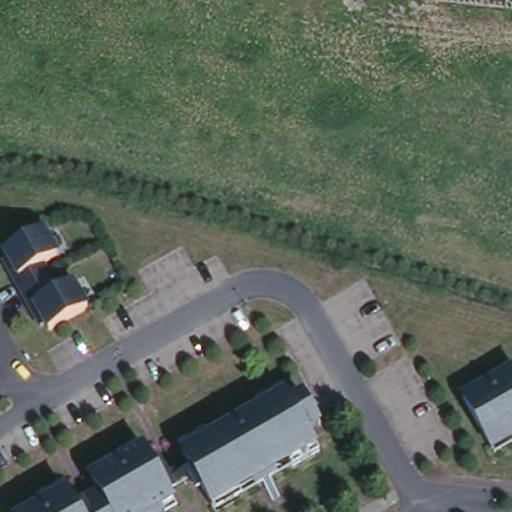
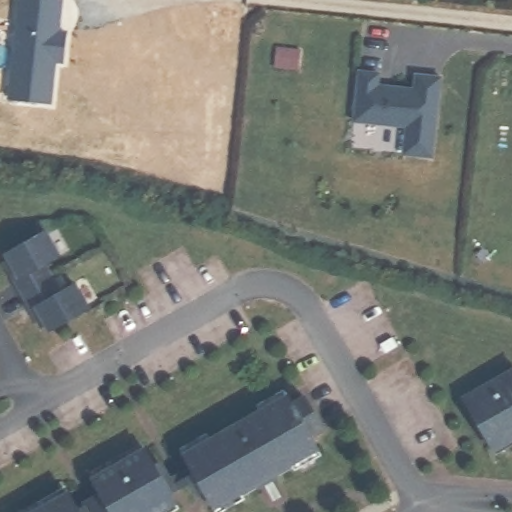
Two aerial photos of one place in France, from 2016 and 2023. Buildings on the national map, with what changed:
new [(61,106),(9,101),(19,0),(66,0),(71,0),(61,106)]
new [(273,67),(275,47),(300,50),(297,70),(273,67)]
new [(432,157),(403,154),(406,127),(353,121),(359,72),(378,74),(377,88),(387,89),(388,87),(414,90),(415,75),(440,77),(432,157)]
unchanged [(6,247),(49,223),(61,250),(53,255),(68,281),(78,275),(93,304),(50,325),(6,247)]
unchanged [(512,360),(512,439),(497,448),(463,389),(512,360)]
unchanged [(182,447),(287,384),(324,447),(215,506),(182,447)]
unchanged [(73,484),(79,495),(98,484),(94,473),(150,440),(181,496),(153,512),(20,512),(73,484)]

